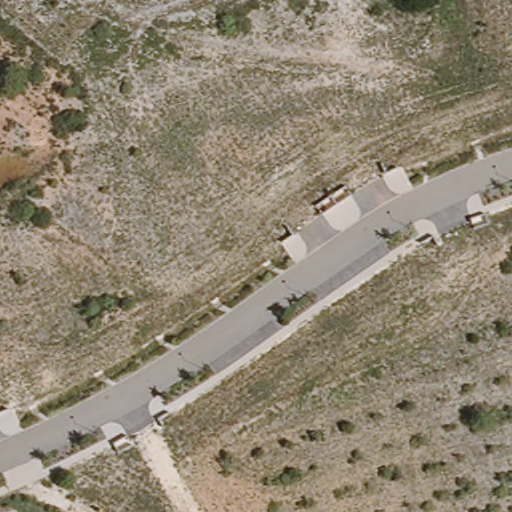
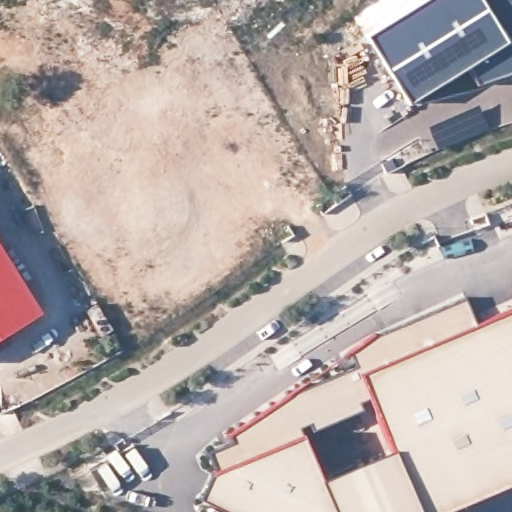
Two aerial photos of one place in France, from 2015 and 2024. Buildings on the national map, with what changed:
unchanged [(512,0),(512,74),(478,85),(466,68),(409,103),(366,35),(423,0),(512,0)]
new [(0,337),(0,248),(40,312),(0,337)]
new [(234,443),(230,436),(287,398),(359,368),(351,350),(465,300),(474,324),(512,309),(512,482),(441,512),(229,512),(201,498),(211,474),(218,471),(208,454),(234,443)]

